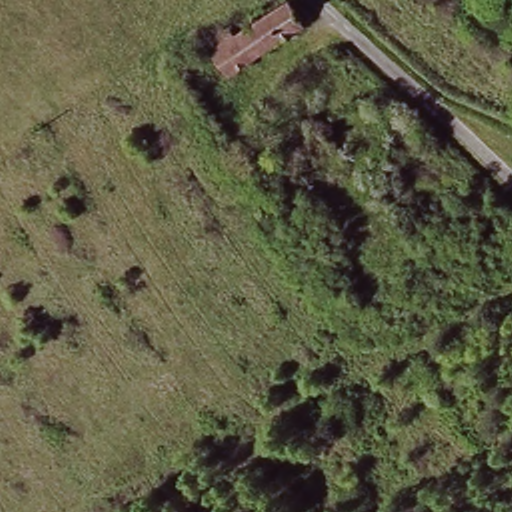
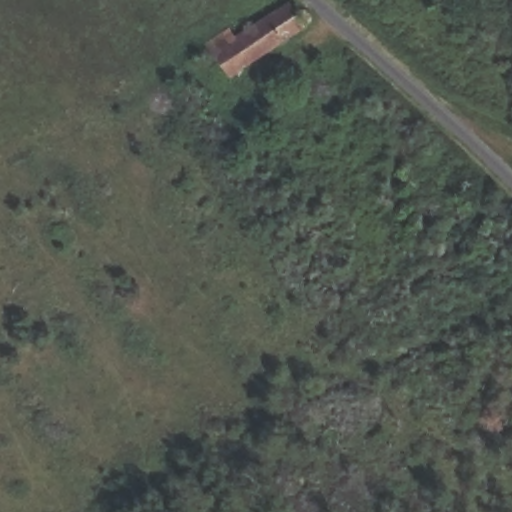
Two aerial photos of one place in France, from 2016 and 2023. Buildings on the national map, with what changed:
unchanged [(230,32),(236,41),(288,5),(293,11),(297,8),(305,16),(300,22),(306,28),(239,75),(246,85),(233,94),(202,51),(230,32)]

